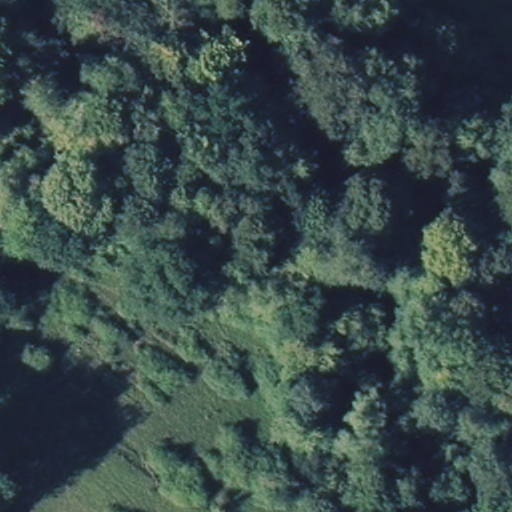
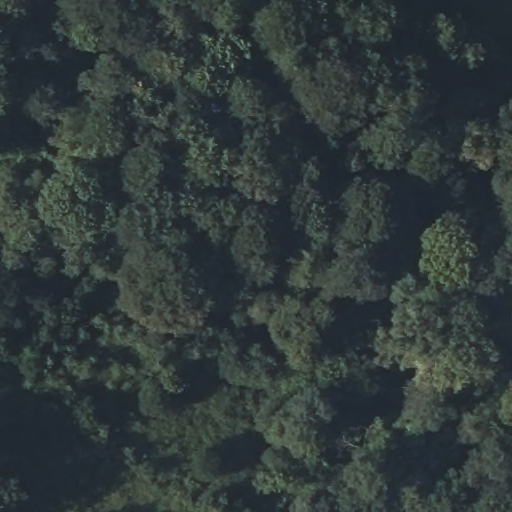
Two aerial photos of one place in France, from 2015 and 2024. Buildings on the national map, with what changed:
[]

